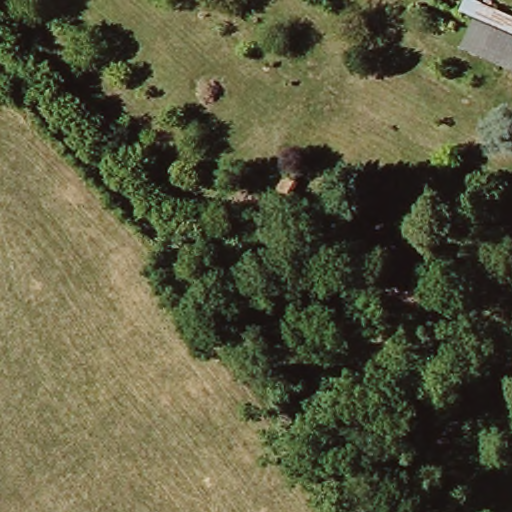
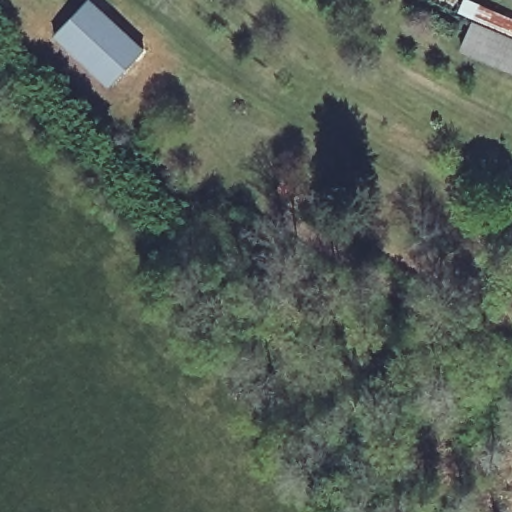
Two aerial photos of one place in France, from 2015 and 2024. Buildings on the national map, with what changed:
new [(91,0),(145,48),(112,85),(56,35),(86,0),(91,0)]
unchanged [(457,33),(469,5),(512,23),(512,57),(457,33)]
unchanged [(287,195),(280,186),(288,178),(296,187),(287,195)]

